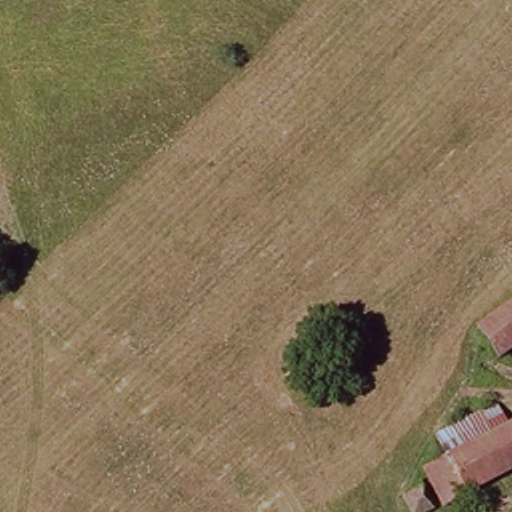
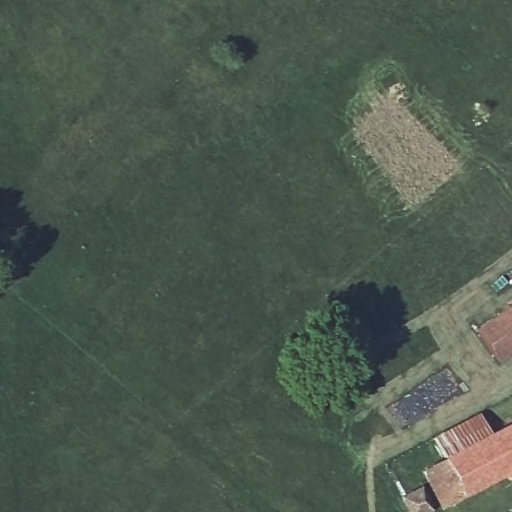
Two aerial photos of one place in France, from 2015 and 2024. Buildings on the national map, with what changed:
unchanged [(479,334),(512,309),(512,353),(499,363),(479,334)]
unchanged [(490,439),(512,429),(512,472),(440,511),(423,476),(444,463),(433,441),(477,417),(490,439)]
unchanged [(400,501),(417,490),(430,512),(429,512),(406,512),(400,501)]

